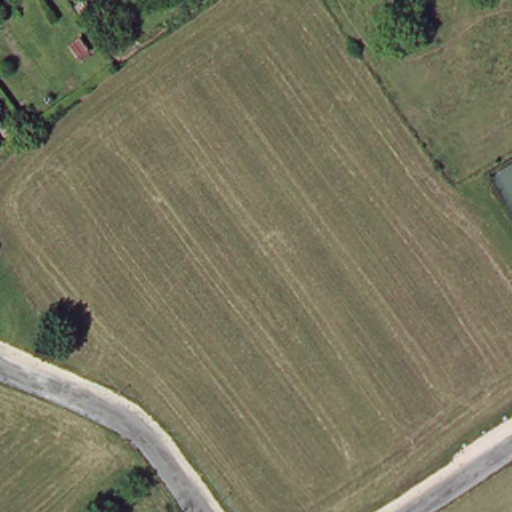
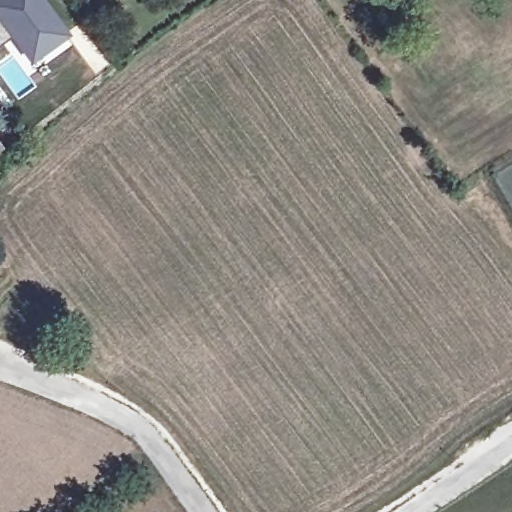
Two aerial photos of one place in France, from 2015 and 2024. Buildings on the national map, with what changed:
new [(70,32),(29,61),(0,24),(0,0),(48,0),(70,32)]

